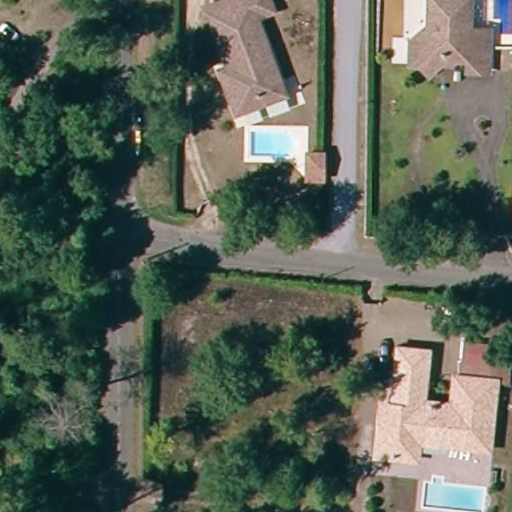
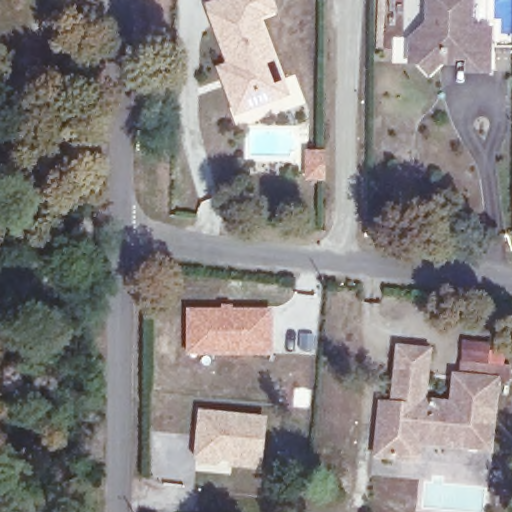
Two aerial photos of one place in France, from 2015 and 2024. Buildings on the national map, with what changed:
unchanged [(235,117),(224,88),(219,73),(225,71),(229,69),(215,29),(209,8),(231,0),(267,0),(273,15),(260,20),(282,81),(287,96),(265,105),(235,117)]
unchanged [(406,41),(406,37),(426,20),(426,0),(466,0),(466,22),(488,23),(487,66),(466,65),(465,56),(446,54),(425,73),(416,62),(416,60),(406,60),(406,41)]
unchanged [(306,171),(306,146),(324,146),(324,171),(306,171)]
new [(185,307),(273,308),(272,355),(185,355),(185,307)]
unchanged [(453,410),(456,382),(496,385),(490,452),(451,449),(451,445),(419,441),(416,465),(384,463),(387,421),(397,422),(398,414),(393,413),(397,385),(399,355),(428,357),(426,388),(424,406),(453,410)]
new [(198,408),(268,416),(262,469),(193,462),(198,408)]

